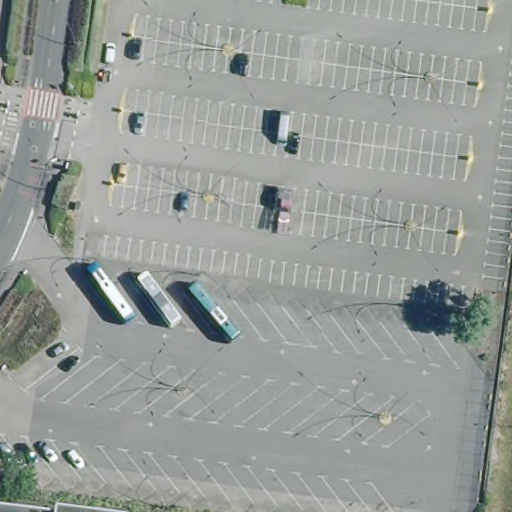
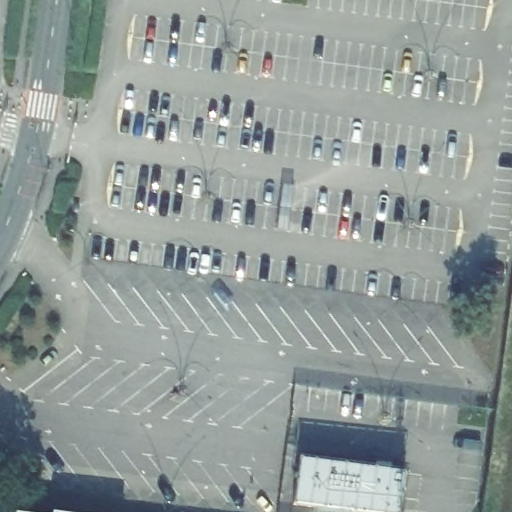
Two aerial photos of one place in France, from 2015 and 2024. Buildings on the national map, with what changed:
new [(299,461),(403,473),(398,512),(361,512),(294,503),(299,461)]
unchanged [(0,508),(30,512),(0,512),(0,508)]

